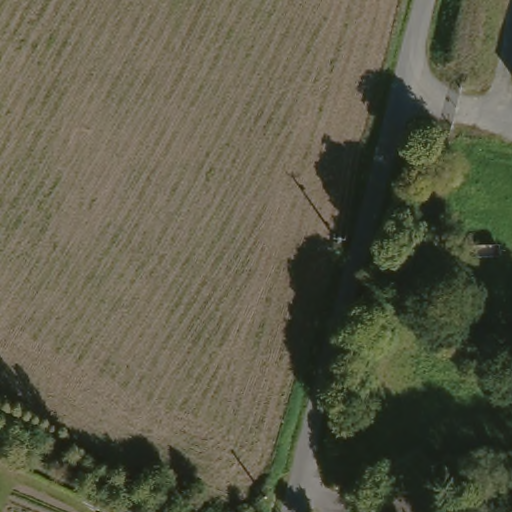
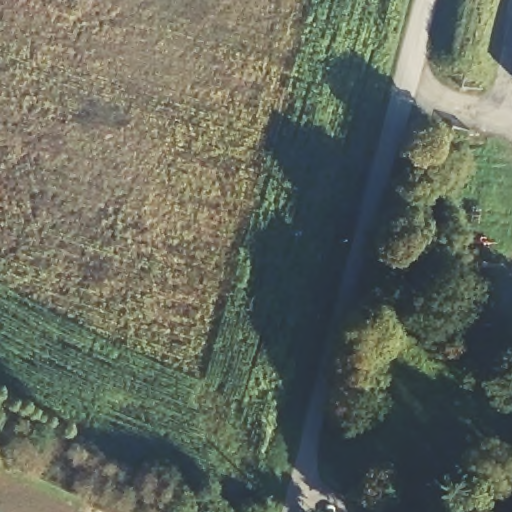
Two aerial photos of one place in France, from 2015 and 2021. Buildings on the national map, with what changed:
[]

